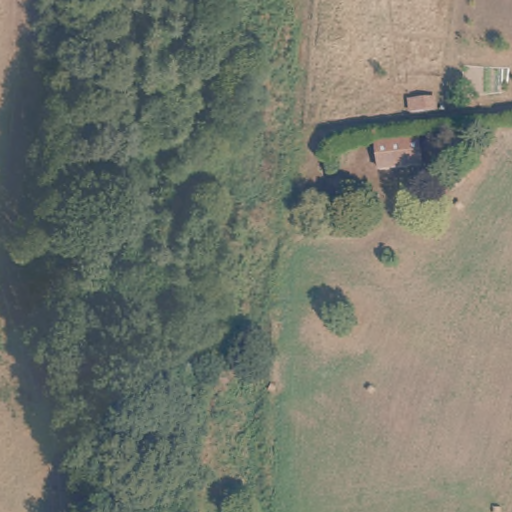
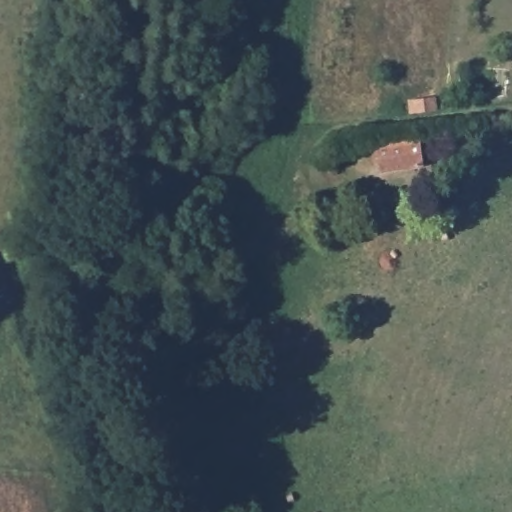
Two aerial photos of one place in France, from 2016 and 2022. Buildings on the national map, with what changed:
unchanged [(422,134),(426,161),(384,168),(380,140),(422,134)]

